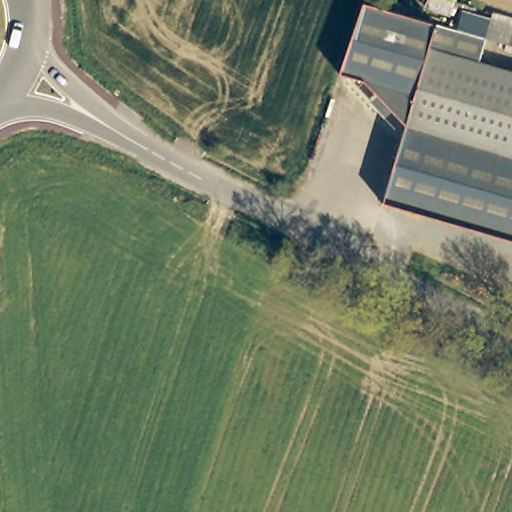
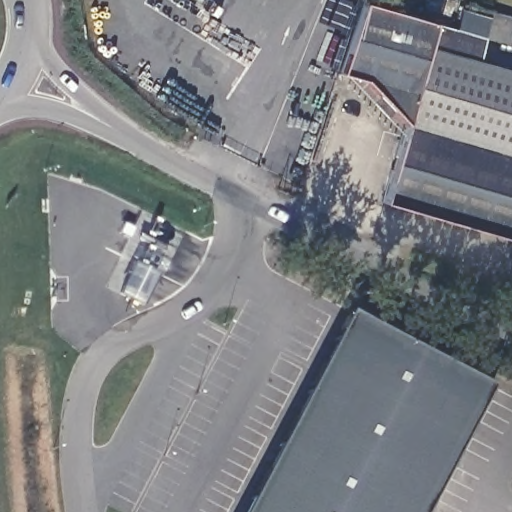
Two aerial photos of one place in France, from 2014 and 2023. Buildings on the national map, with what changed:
unchanged [(379,205),(398,141),(402,127),(361,84),(336,75),(357,6),(483,41),(477,64),(512,74),(512,244),(379,205)]
unchanged [(512,19),(512,46),(483,39),(491,12),(512,19)]
new [(135,265),(157,276),(147,297),(143,305),(121,295),(125,286),(135,265)]
new [(425,512),(245,512),(350,310),(492,385),(425,512)]

